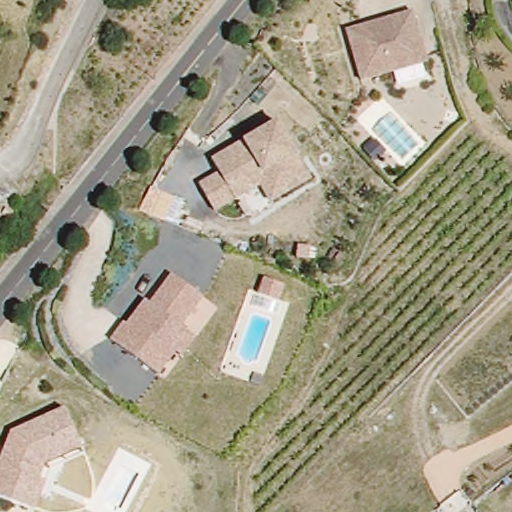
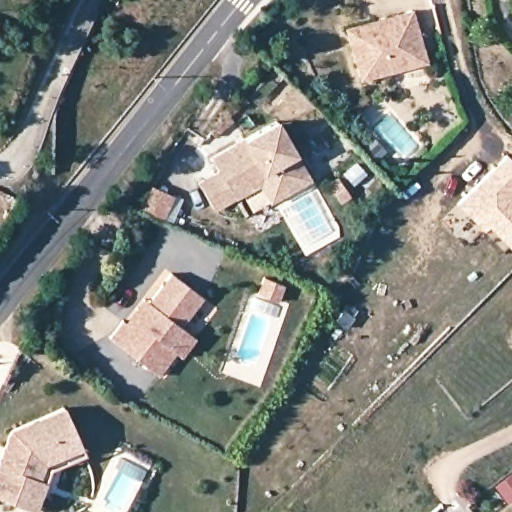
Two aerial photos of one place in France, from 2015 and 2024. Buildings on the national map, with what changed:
unchanged [(420,14),(432,65),(393,75),(366,82),(354,31),(420,14)]
unchanged [(310,182),(271,205),(261,187),(211,214),(195,184),(214,171),(209,159),(243,141),(277,121),(310,182)]
new [(506,153),(512,159),(512,241),(506,246),(487,226),(482,231),(457,203),(506,153)]
new [(335,175),(346,192),(337,197),(326,180),(335,175)]
new [(151,188),(174,198),(166,216),(143,206),(151,188)]
unchanged [(218,309),(178,365),(168,359),(156,376),(109,340),(120,320),(127,323),(145,300),(149,302),(171,275),(218,309)]
unchanged [(0,494),(0,450),(8,427),(59,404),(79,449),(46,464),(30,505),(0,494)]
new [(499,506),(491,512),(475,512),(469,505),(488,491),(499,506)]

